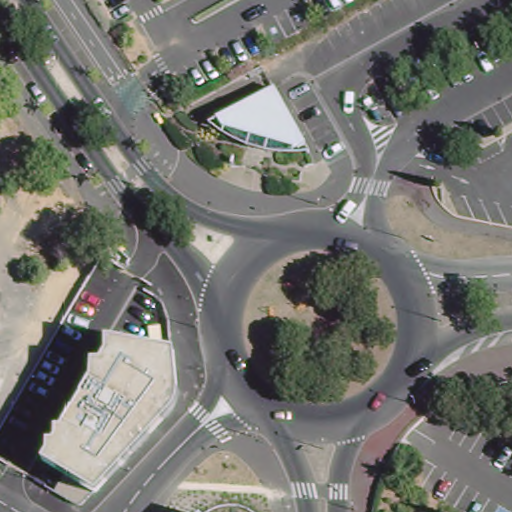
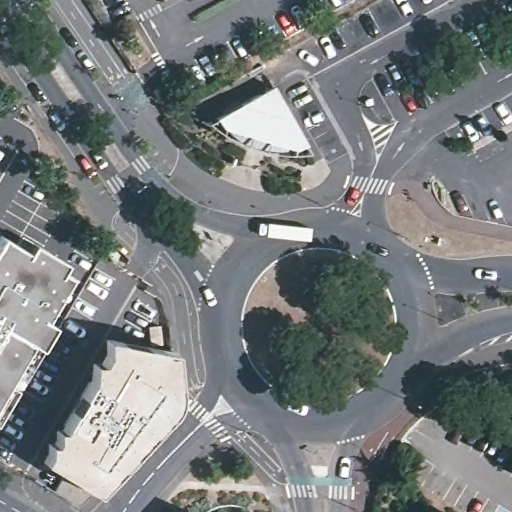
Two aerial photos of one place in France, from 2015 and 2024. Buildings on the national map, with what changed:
unchanged [(221,130),(215,123),(274,89),(306,146),(294,151),(221,130)]
new [(26,254),(33,243),(64,262),(59,271),(69,277),(43,321),(51,325),(39,345),(34,343),(0,398),(0,238),(26,254)]
unchanged [(108,353),(107,338),(174,351),(178,391),(176,405),(169,417),(96,493),(78,505),(56,492),(65,476),(43,462),(108,353)]

